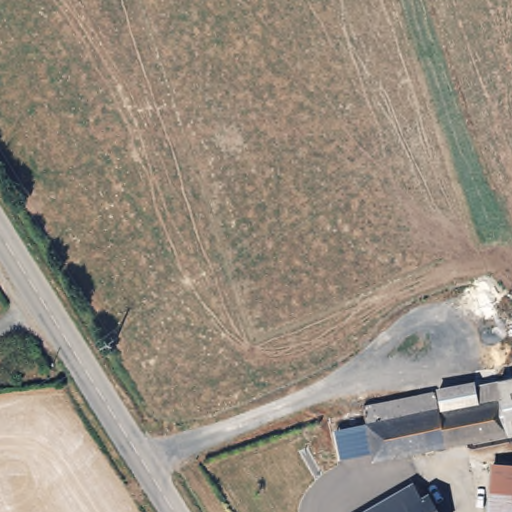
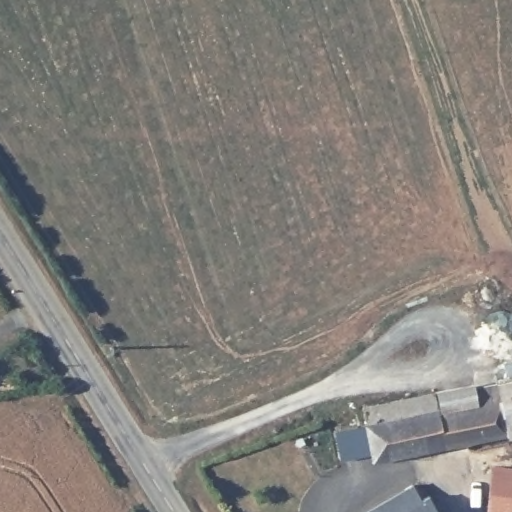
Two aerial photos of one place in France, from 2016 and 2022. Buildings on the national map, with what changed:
unchanged [(434,413),(501,401),(498,385),(512,382),(512,436),(372,460),(372,458),(363,408),(431,397),(434,413)]
unchanged [(363,408),(372,458),(334,465),(326,415),(363,408)]
unchanged [(512,512),(481,512),(488,474),(512,477),(512,512)]
unchanged [(412,486),(420,500),(425,497),(433,512),(364,512),(412,486)]

